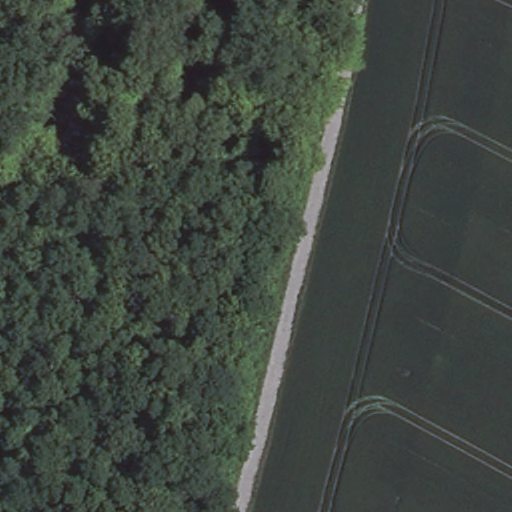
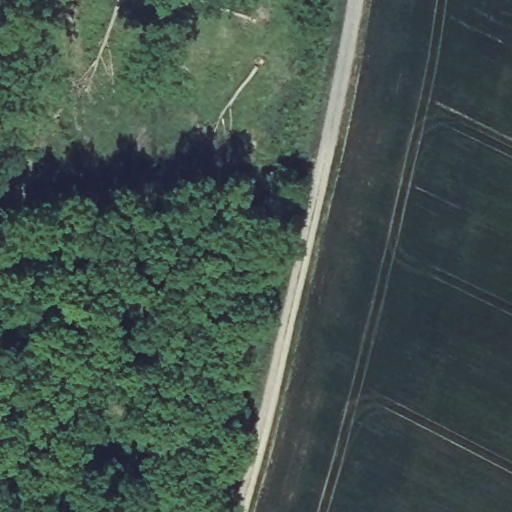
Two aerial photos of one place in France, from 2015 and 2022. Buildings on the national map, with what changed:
[]

